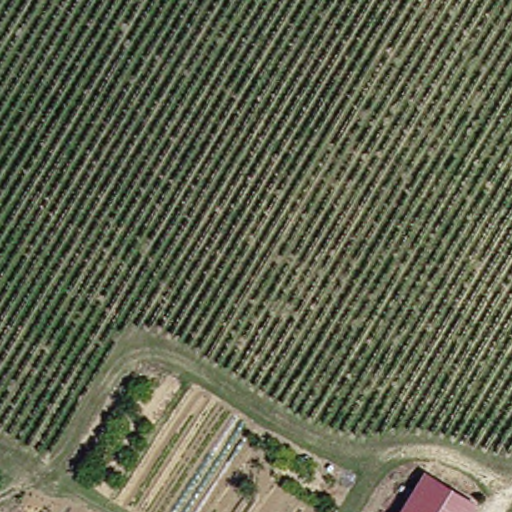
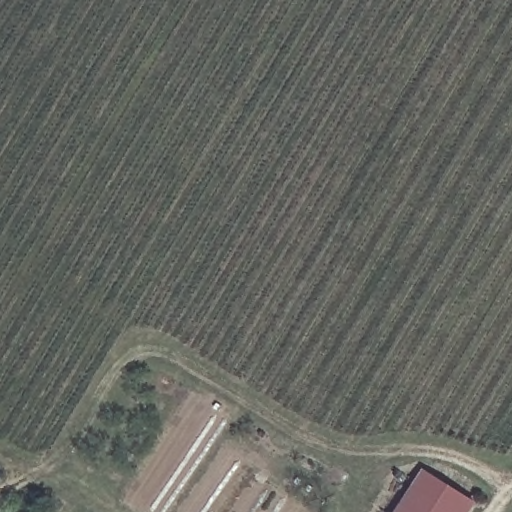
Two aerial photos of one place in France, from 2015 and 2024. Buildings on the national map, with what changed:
unchanged [(474,512),(406,512),(434,468),(482,499),(474,512)]

